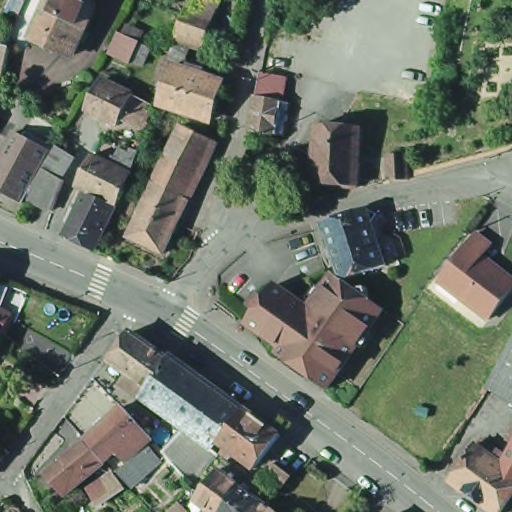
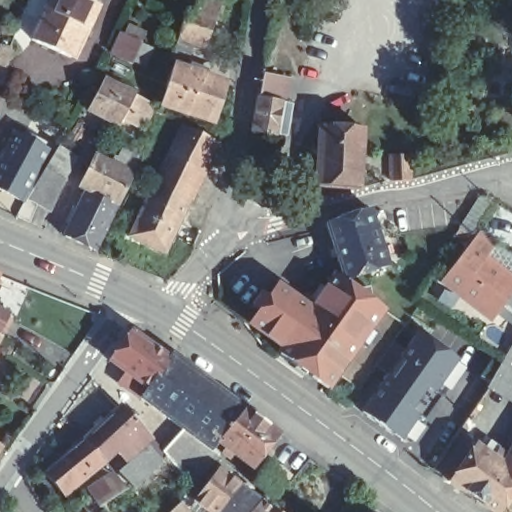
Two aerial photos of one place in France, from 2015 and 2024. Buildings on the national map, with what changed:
unchanged [(70,61),(31,44),(51,0),(98,0),(93,9),(96,16),(76,58),(70,61)]
unchanged [(194,0),(224,0),(220,11),(194,0)]
unchanged [(180,42),(181,39),(186,24),(187,21),(193,24),(199,7),(220,14),(213,30),(206,51),(180,42)]
unchanged [(141,43),(132,63),(113,54),(123,34),(141,43)]
unchanged [(0,94),(0,56),(10,58),(3,95),(0,94)]
unchanged [(287,71),(285,96),(295,99),(288,139),(247,133),(257,67),(287,71)]
unchanged [(212,124),(161,109),(173,69),(190,75),(191,70),(206,74),(205,80),(225,87),(212,124)]
unchanged [(144,134),(122,123),(118,129),(88,114),(104,84),(134,100),(155,111),(144,134)]
unchanged [(366,185),(320,184),(325,125),(368,128),(366,185)]
unchanged [(160,188),(180,146),(188,130),(222,147),(214,163),(195,204),(160,188)]
unchanged [(0,194),(0,167),(16,137),(54,158),(58,150),(75,161),(62,183),(65,184),(48,213),(29,202),(25,208),(0,194)]
unchanged [(86,195),(78,192),(95,159),(114,168),(120,155),(130,159),(133,154),(140,156),(132,178),(116,210),(86,195)]
unchanged [(391,180),(390,155),(410,154),(411,179),(391,180)]
unchanged [(195,204),(169,257),(134,240),(160,188),(195,204)]
unchanged [(63,240),(69,229),(65,226),(68,219),(71,212),(76,214),(86,195),(116,210),(93,254),(63,240)]
unchanged [(331,234),(375,220),(393,275),(350,290),(331,234)]
unchanged [(493,244),(485,256),(495,264),(494,266),(504,274),(505,272),(512,277),(512,292),(491,319),(441,280),(478,234),(493,244)]
unchanged [(361,299),(373,297),(375,308),(388,318),(330,397),(283,362),(287,356),(252,330),(281,293),(305,310),(312,302),(322,309),(340,284),(350,290),(361,299)]
unchanged [(507,312),(512,305),(512,315),(507,312)]
unchanged [(0,309),(10,314),(0,334),(0,309)]
new [(467,364),(410,449),(361,415),(413,328),(467,364)]
unchanged [(231,459),(224,453),(228,448),(217,440),(210,449),(184,430),(140,399),(127,386),(135,377),(110,359),(131,330),(169,358),(171,354),(245,407),(280,433),(270,448),(254,468),(235,454),(231,459)]
unchanged [(502,372),(512,354),(512,377),(502,372)]
unchanged [(491,391),(502,372),(512,377),(512,402),(491,391)]
unchanged [(128,459),(116,451),(105,462),(93,448),(85,439),(122,405),(153,438),(158,444),(164,450),(165,451),(184,430),(210,449),(220,456),(220,457),(218,459),(193,486),(165,456),(161,459),(162,461),(143,478),(131,489),(127,484),(117,474),(128,464),(130,463),(128,459)]
unchanged [(504,512),(498,512),(455,480),(481,443),(482,444),(486,438),(501,449),(497,455),(508,463),(512,466),(512,501),(504,512)]
unchanged [(66,496),(45,473),(56,465),(57,466),(85,439),(93,448),(105,462),(66,496)]
unchanged [(0,450),(0,445),(2,447),(0,450)]
unchanged [(512,456),(512,466),(508,463),(512,456)]
unchanged [(289,473),(273,493),(257,481),(273,461),(289,473)]
unchanged [(206,508),(195,499),(220,468),(241,484),(263,501),(254,512),(203,512),(205,509),(206,508)]
unchanged [(125,484),(105,496),(100,488),(119,477),(125,484)]
unchanged [(279,512),(254,512),(263,501),(279,512)]
unchanged [(190,511),(188,512),(170,512),(180,502),(190,511)]

